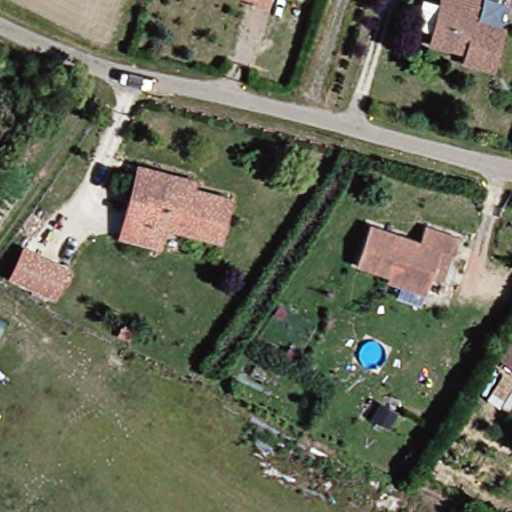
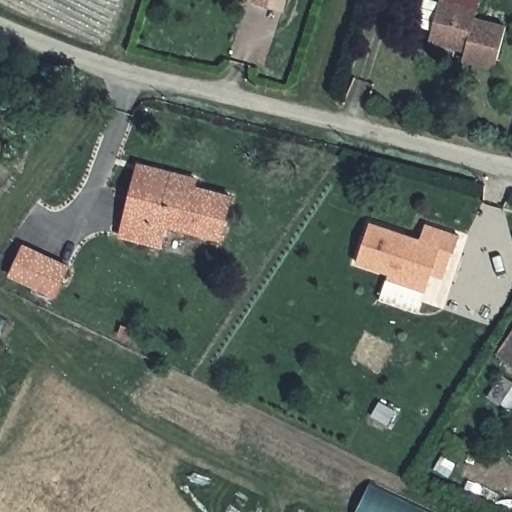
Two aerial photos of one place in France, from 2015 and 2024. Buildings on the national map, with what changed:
unchanged [(244,2),(244,0),(264,0),(262,8),(244,2)]
unchanged [(437,0),(478,0),(474,20),(500,27),(489,65),(459,57),(461,50),(425,41),(428,31),(437,0)]
unchanged [(130,165),(191,180),(189,191),(145,179),(141,201),(124,197),(130,165)]
unchanged [(117,222),(124,197),(141,201),(145,179),(189,191),(224,198),(215,239),(165,228),(159,248),(139,242),(113,236),(117,222)]
unchanged [(424,274),(420,285),(350,259),(365,220),(413,237),(419,222),(453,235),(450,250),(444,249),(436,276),(424,274)]
unchanged [(18,242),(64,264),(49,296),(5,273),(18,242)]
unchanged [(11,322),(0,339),(0,317),(11,322)]
unchanged [(512,327),(512,362),(497,351),(512,327)]
new [(369,484),(426,512),(354,512),(369,484)]

